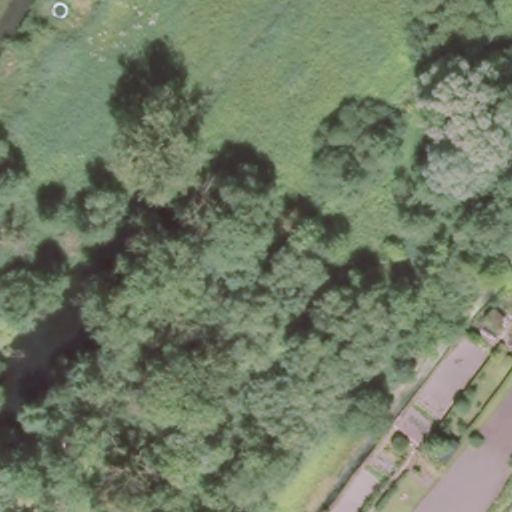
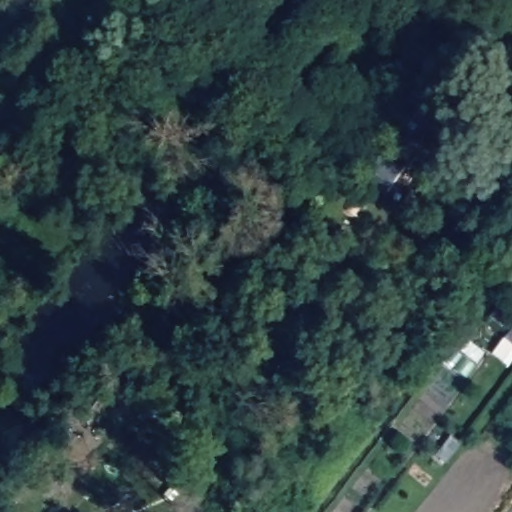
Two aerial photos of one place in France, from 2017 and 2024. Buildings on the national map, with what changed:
unchanged [(377,381),(370,390),(362,384),(369,375),(377,381)]
unchanged [(175,445),(168,454),(152,442),(160,433),(175,445)]
unchanged [(450,440),(460,448),(445,466),(435,458),(450,440)]
unchanged [(13,490),(2,482),(10,470),(21,478),(13,490)]

